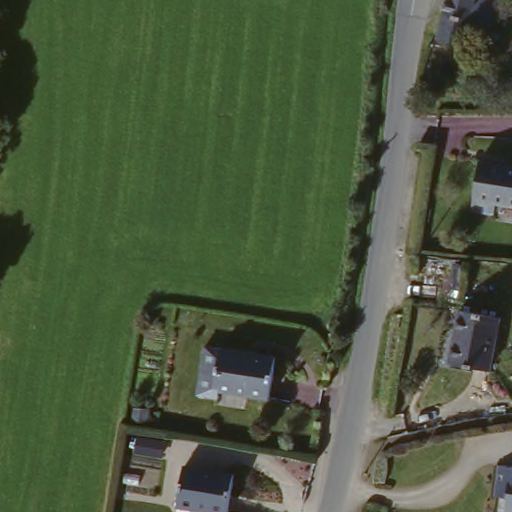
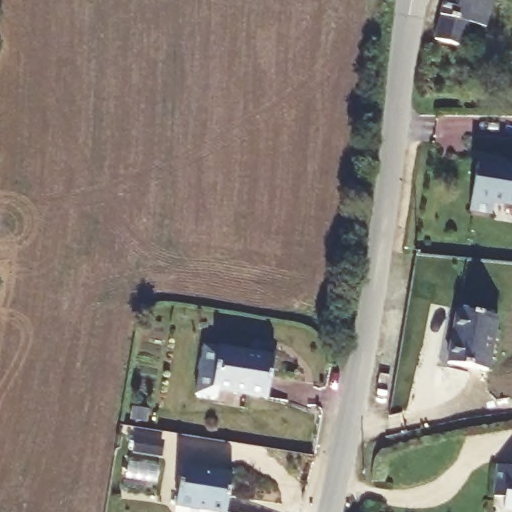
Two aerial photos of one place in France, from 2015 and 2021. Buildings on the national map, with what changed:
unchanged [(444,0),(487,0),(483,21),(469,19),(464,51),(437,47),(439,29),(444,0)]
unchanged [(511,167),(512,162),(512,209),(502,208),(501,217),(473,215),(477,166),(511,167)]
unchanged [(453,315),(489,322),(483,373),(444,367),(453,315)]
unchanged [(206,396),(213,356),(264,363),(257,404),(206,396)]
unchanged [(231,483),(225,512),(177,512),(183,476),(231,483)]
unchanged [(498,509),(503,477),(512,479),(512,512),(509,512),(509,510),(498,509)]

